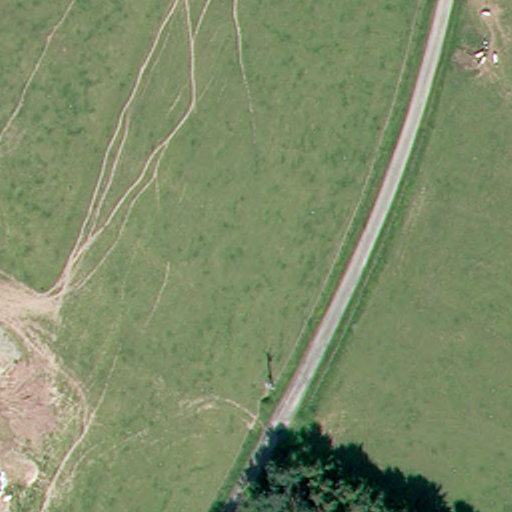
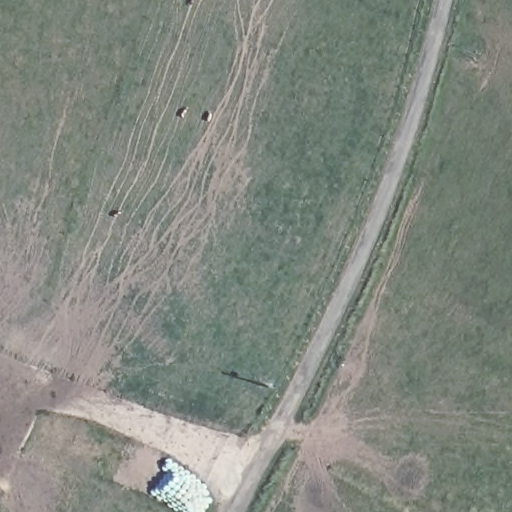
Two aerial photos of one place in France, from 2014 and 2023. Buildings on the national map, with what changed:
unchanged [(0,493),(0,489),(2,490),(0,493)]

